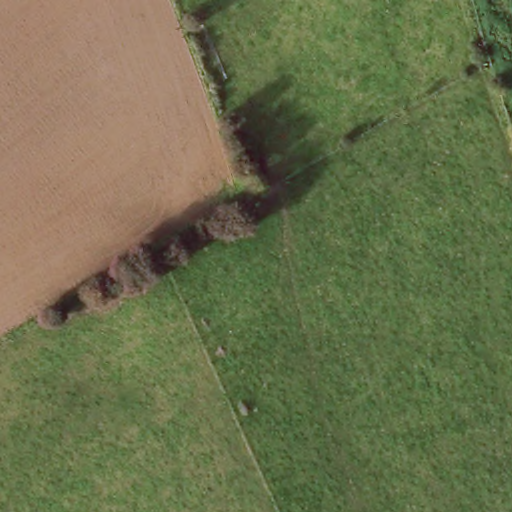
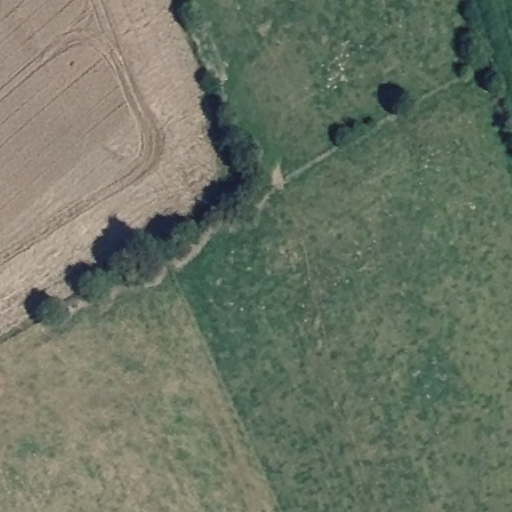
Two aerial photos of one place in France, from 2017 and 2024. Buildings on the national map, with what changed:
unchanged [(354,270),(342,263),(350,249),(362,255),(358,262),(354,270)]

